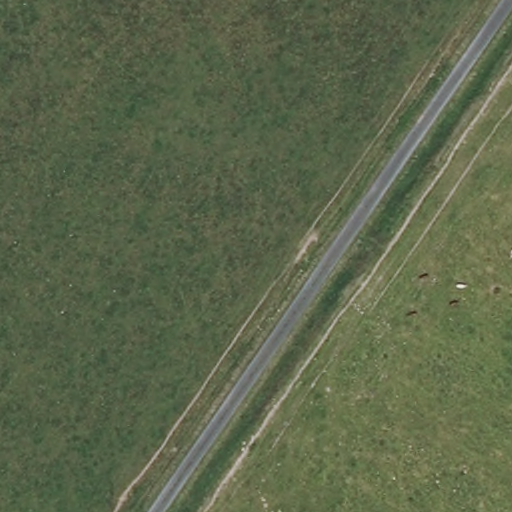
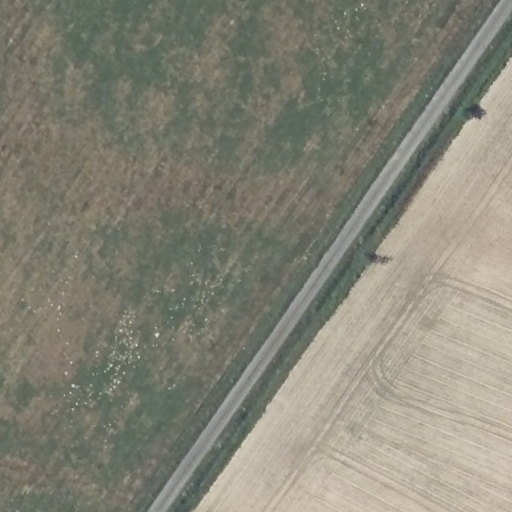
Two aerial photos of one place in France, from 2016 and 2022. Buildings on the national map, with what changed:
[]

